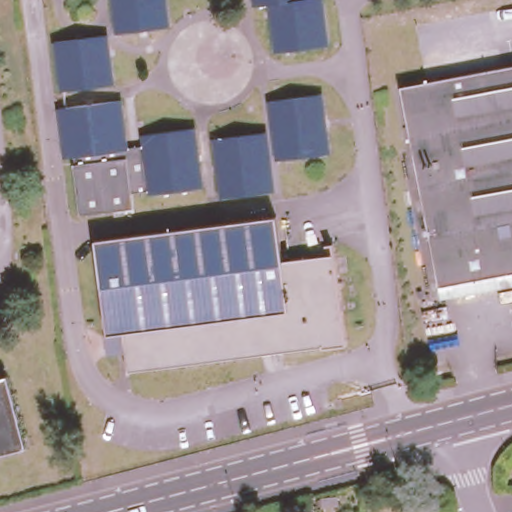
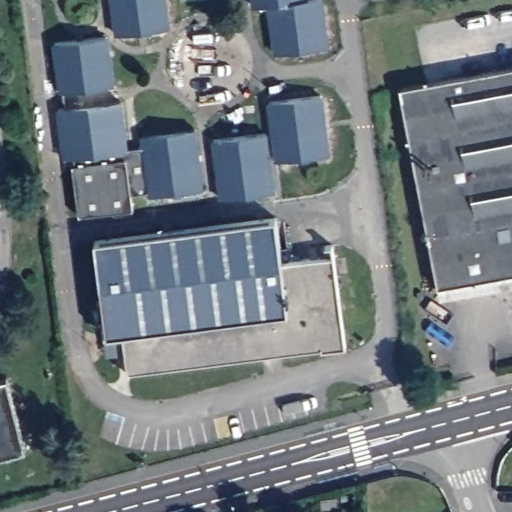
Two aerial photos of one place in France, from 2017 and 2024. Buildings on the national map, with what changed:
unchanged [(110,33),(106,0),(159,0),(163,26),(110,33)]
unchanged [(310,0),(315,0),(325,0),(332,47),(280,55),(273,6),(258,8),(257,0),(310,0)]
unchanged [(111,83),(61,90),(53,42),(105,35),(111,83)]
unchanged [(398,84),(512,61),(512,268),(441,283),(398,84)]
unchanged [(331,151),(278,158),(269,99),(322,91),(331,151)]
unchanged [(128,149),(67,158),(60,108),(121,100),(128,149)]
unchanged [(203,185),(153,191),(147,146),(145,134),(196,127),(203,185)]
unchanged [(274,189),(222,197),(213,136),(266,129),(274,189)]
unchanged [(128,149),(147,146),(153,191),(131,194),(133,208),(77,213),(67,158),(128,149)]
unchanged [(279,258),(332,251),(345,343),(318,347),(316,342),(127,368),(120,331),(105,333),(90,238),(273,214),(279,258)]
unchanged [(24,447),(0,454),(0,376),(5,374),(24,447)]

